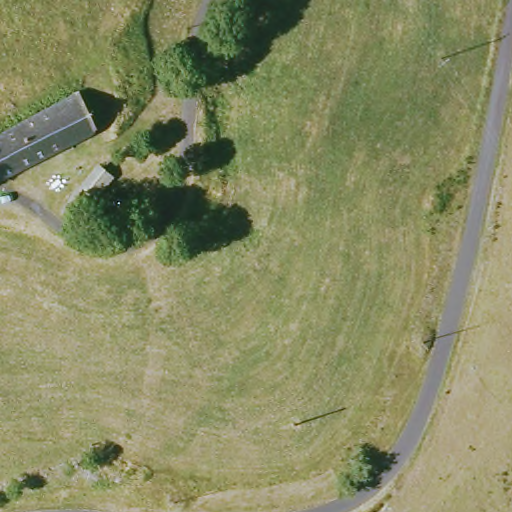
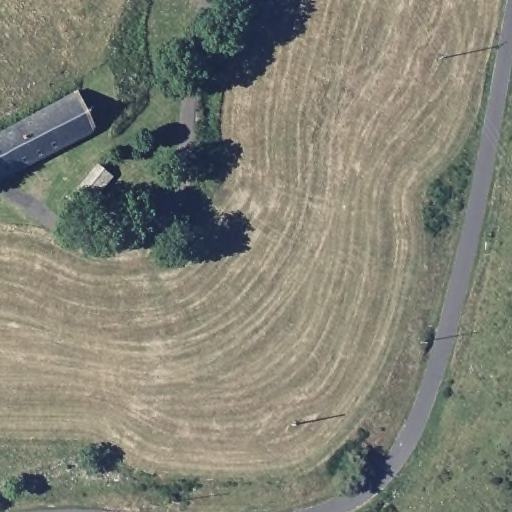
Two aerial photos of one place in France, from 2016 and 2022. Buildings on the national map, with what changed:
unchanged [(15,175),(0,182),(0,135),(77,96),(96,134),(15,175)]
unchanged [(100,161),(113,172),(96,195),(82,184),(100,161)]

